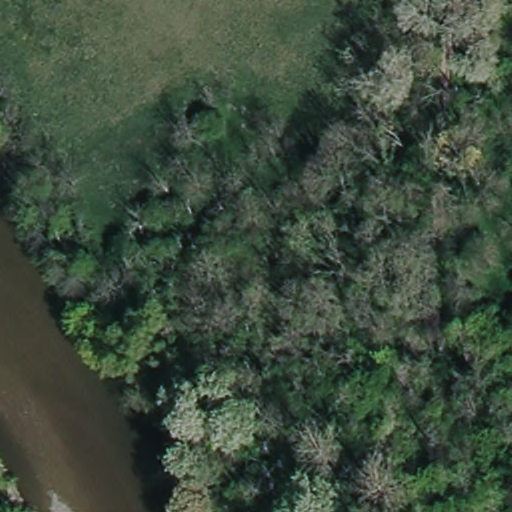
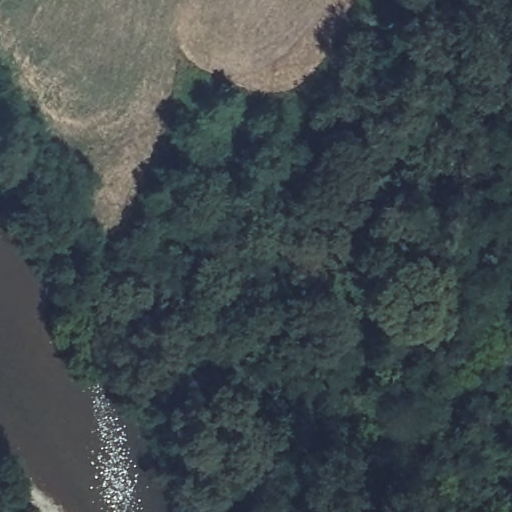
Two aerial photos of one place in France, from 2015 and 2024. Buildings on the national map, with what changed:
unchanged [(395,152),(401,131),(414,135),(408,157),(395,152)]

